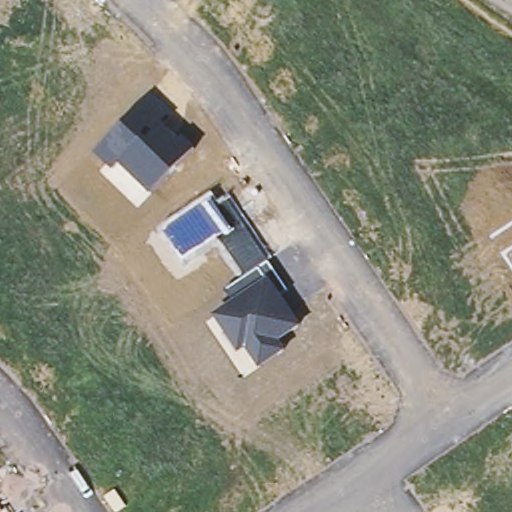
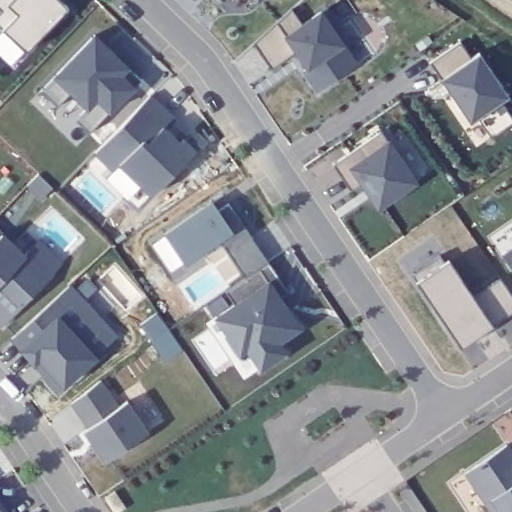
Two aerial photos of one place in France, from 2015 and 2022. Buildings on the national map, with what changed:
new [(0,26),(0,12),(2,9),(0,7),(0,0),(58,0),(65,7),(24,50),(3,29),(0,26)]
new [(257,0),(260,0),(258,1),(257,0)]
new [(292,8),(303,24),(328,6),(342,26),(335,31),(358,65),(318,92),(304,70),(307,67),(297,52),(271,69),(253,43),(292,8)]
new [(76,120),(87,109),(70,92),(57,105),(40,89),(54,76),(95,35),(127,66),(141,80),(135,87),(112,112),(90,132),(76,120)]
new [(472,57),(480,52),(502,85),(495,90),(512,115),(512,123),(492,137),(471,106),(464,112),(451,94),(442,79),(430,62),(461,41),(472,57)]
unchanged [(119,163),(112,169),(96,152),(153,94),(175,113),(165,124),(181,139),(185,135),(196,147),(150,193),(119,163)]
new [(382,131),(416,181),(379,207),(363,183),(351,191),(333,164),(382,131)]
unchanged [(215,314),(234,300),(226,290),(246,276),(221,237),(185,262),(163,230),(215,195),(220,203),(231,196),(272,258),(267,261),(288,291),(281,295),(302,327),(281,341),(288,351),(260,369),(247,349),(240,354),(215,314)]
new [(26,253),(40,240),(63,263),(2,325),(0,323),(0,228),(5,233),(26,253)]
new [(501,253),(512,247),(512,269),(501,253)]
new [(462,347),(460,344),(435,308),(442,303),(433,290),(426,295),(412,274),(440,255),(470,299),(501,278),(512,294),(512,314),(462,347)]
new [(11,337),(70,287),(117,337),(59,388),(11,337)]
new [(85,430),(88,428),(70,402),(102,381),(120,407),(127,401),(147,433),(104,460),(85,430)]
new [(510,444),(512,448),(512,512),(491,512),(466,472),(510,444)]
unchanged [(0,512),(0,510),(1,512),(0,512)]
unchanged [(6,512),(1,512),(5,510),(6,512)]

